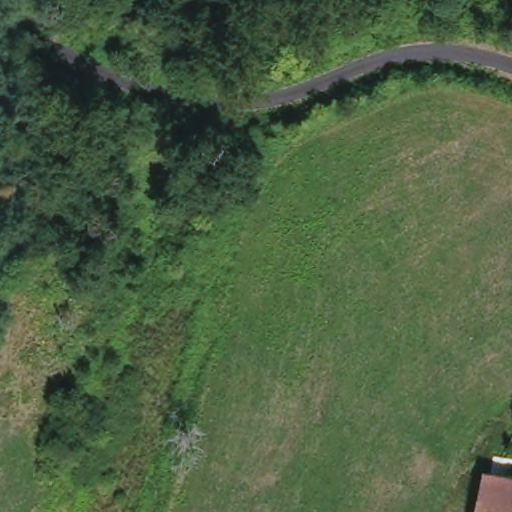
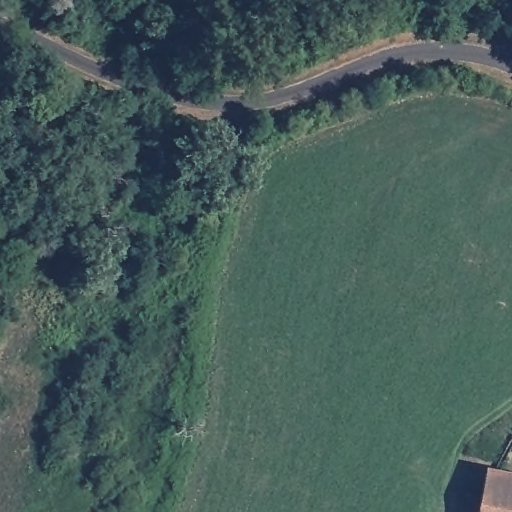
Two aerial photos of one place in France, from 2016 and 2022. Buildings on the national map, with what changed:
unchanged [(487,474),(512,479),(512,512),(481,512),(487,474)]

